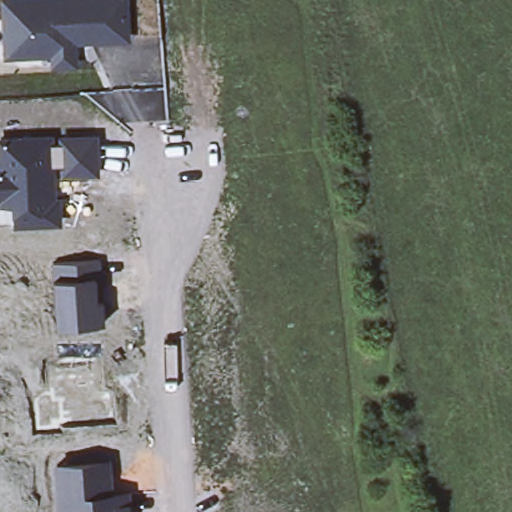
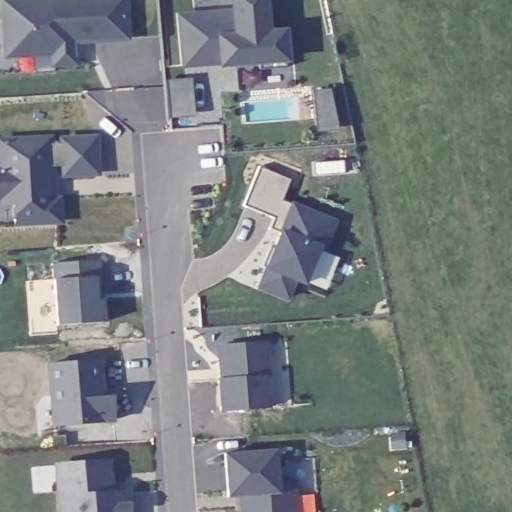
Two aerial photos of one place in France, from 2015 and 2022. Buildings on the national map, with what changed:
unchanged [(2,0),(129,0),(131,39),(77,42),(78,65),(51,66),(50,55),(4,57),(2,0)]
new [(178,13),(229,9),(229,0),(268,0),(271,30),(287,29),(290,63),(219,68),(182,68),(178,13)]
unchanged [(99,133),(100,175),(59,178),(61,222),(13,223),(12,205),(0,205),(0,135),(99,133)]
new [(260,167),(289,178),(281,200),(289,204),(291,201),(337,220),(326,250),(319,248),(304,286),(294,282),(286,302),(255,288),(264,269),(279,231),(269,228),(276,216),(244,205),(260,167)]
unchanged [(53,280),(53,262),(101,258),(103,278),(96,279),(98,300),(103,299),(104,324),(56,326),(53,280)]
new [(224,378),(224,368),(220,369),(218,345),(265,341),(269,406),(220,409),(218,379),(224,378)]
new [(47,362),(100,358),(103,396),(113,395),(114,422),(102,423),(51,427),(47,362)]
new [(227,498),(224,453),(276,449),(279,481),(296,482),(298,512),(240,512),(239,496),(227,498)]
unchanged [(110,457),(112,490),(129,488),(131,512),(56,512),(52,461),(110,457)]

